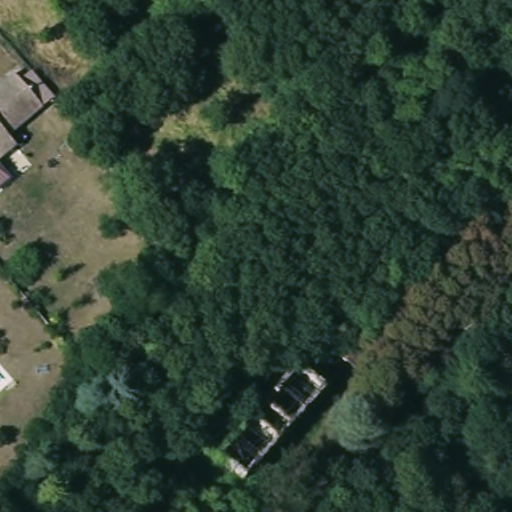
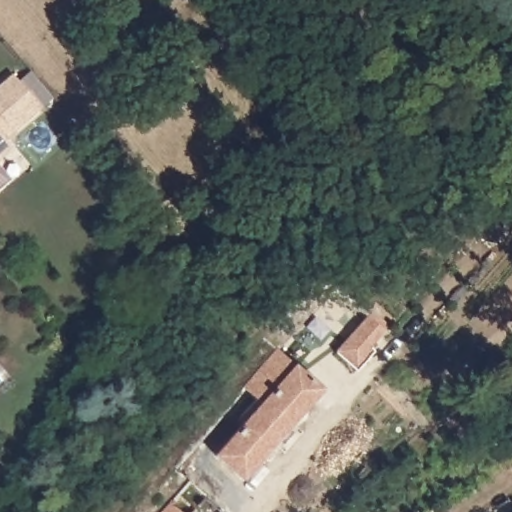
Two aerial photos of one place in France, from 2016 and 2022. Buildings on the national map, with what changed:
unchanged [(47,107),(12,136),(20,146),(0,163),(0,89),(19,74),(47,107)]
new [(372,318),(388,331),(370,354),(375,357),(358,379),(336,362),(372,318)]
new [(214,456),(296,363),(325,389),(242,480),(214,456)]

